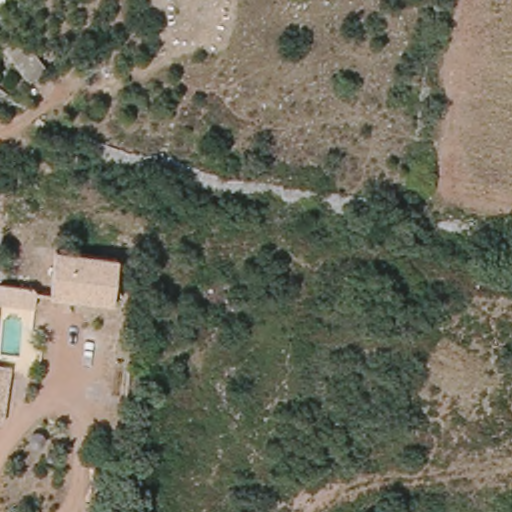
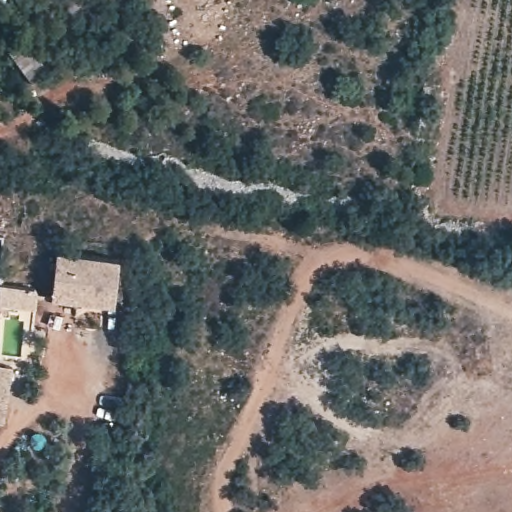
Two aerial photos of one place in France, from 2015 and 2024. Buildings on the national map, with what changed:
unchanged [(30,80),(13,56),(26,46),(44,69),(30,80)]
unchanged [(51,301),(56,246),(121,257),(116,310),(51,301)]

